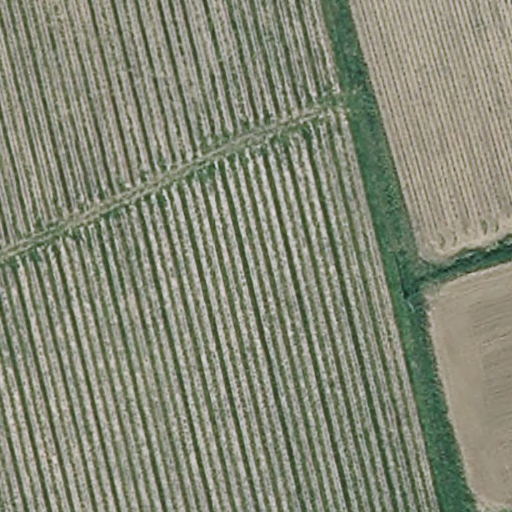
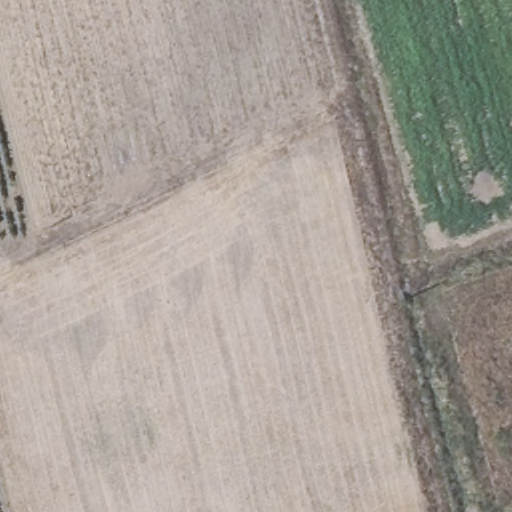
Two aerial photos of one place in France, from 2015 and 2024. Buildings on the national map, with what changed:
[]

